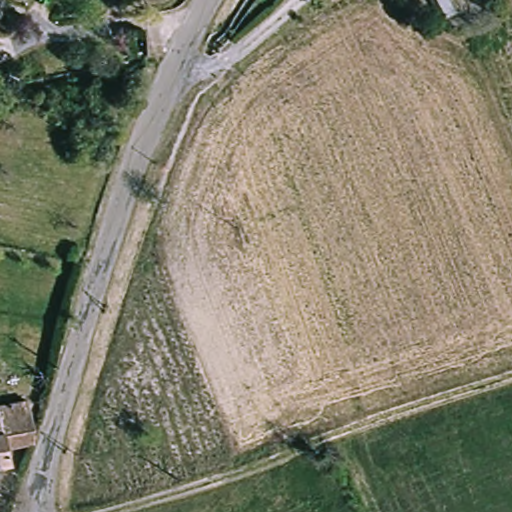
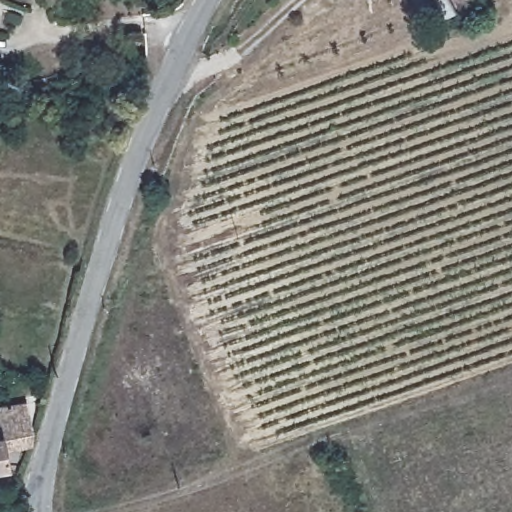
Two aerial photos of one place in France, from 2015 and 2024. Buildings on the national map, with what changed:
unchanged [(456,14),(445,20),(437,12),(435,10),(430,0),(450,0),(456,14)]
unchanged [(29,399),(35,435),(11,448),(7,434),(0,435),(0,406),(29,399)]
unchanged [(11,448),(15,466),(0,470),(0,435),(7,434),(11,448)]

